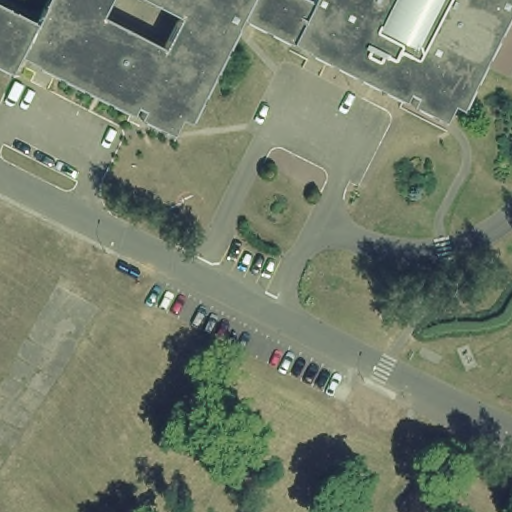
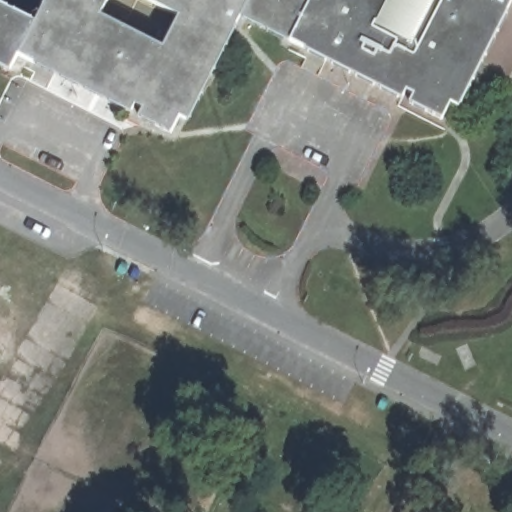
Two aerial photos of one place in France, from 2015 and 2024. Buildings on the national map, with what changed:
unchanged [(34,22),(45,0),(304,0),(309,3),(311,0),(512,0),(512,7),(462,104),(454,100),(441,119),(238,20),(189,117),(179,113),(171,130),(19,52),(8,71),(0,66),(0,4),(34,22)]

